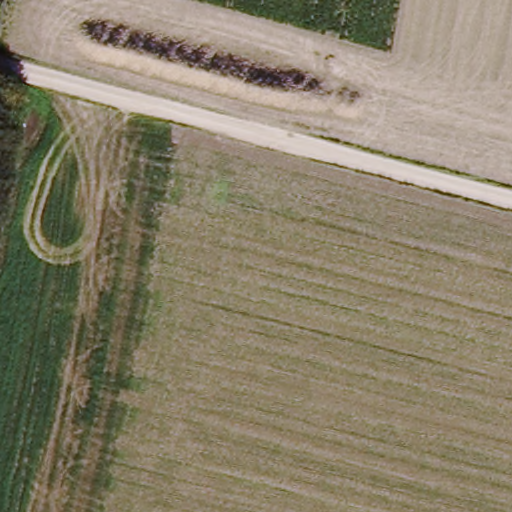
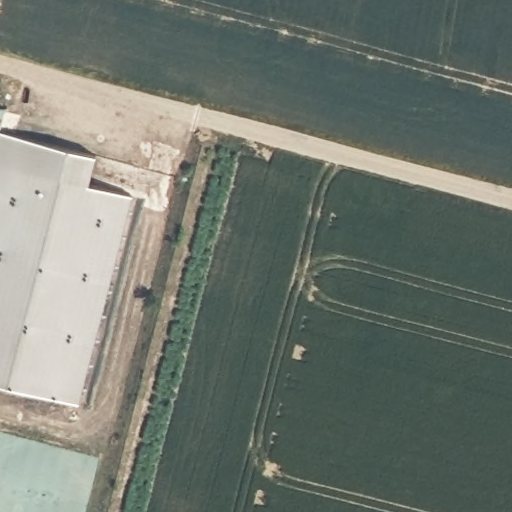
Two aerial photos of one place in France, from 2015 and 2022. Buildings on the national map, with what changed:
new [(100,154),(92,184),(134,195),(80,405),(0,385),(0,129),(100,154)]

